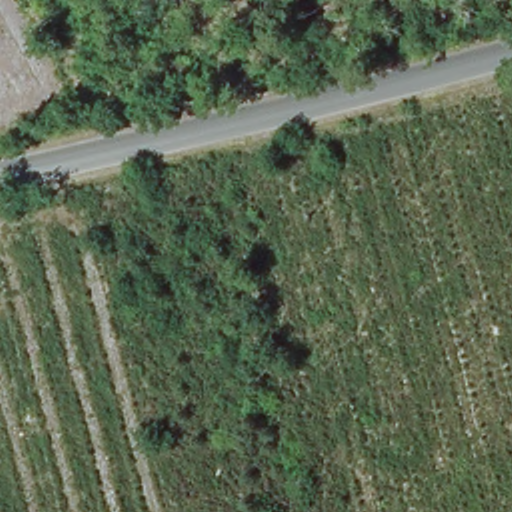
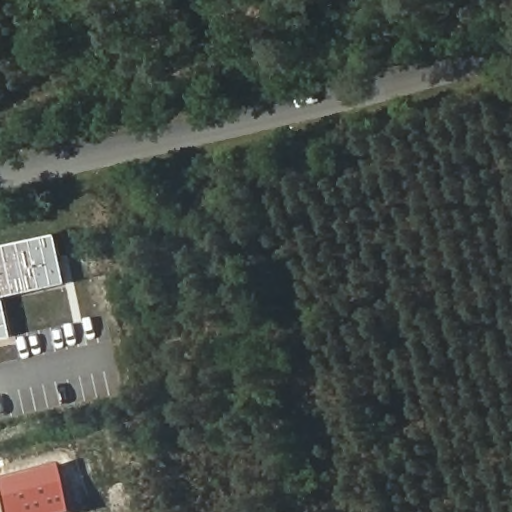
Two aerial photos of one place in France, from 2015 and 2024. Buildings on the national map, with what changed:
new [(56,234),(67,283),(4,295),(13,337),(0,340),(0,245),(56,234)]
new [(1,479),(62,464),(74,512),(9,512),(1,479)]

